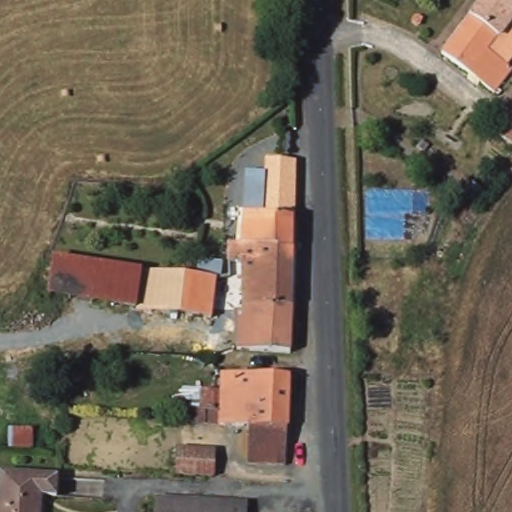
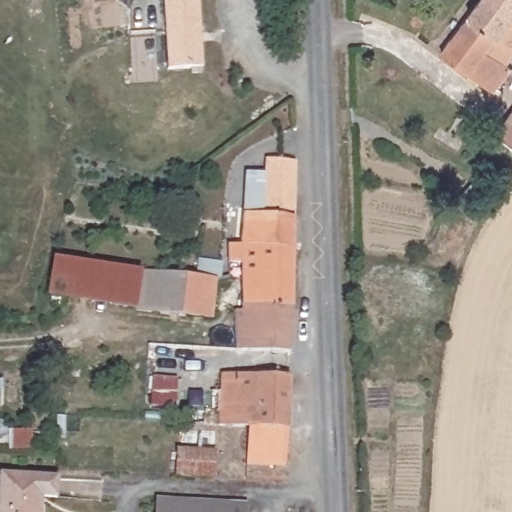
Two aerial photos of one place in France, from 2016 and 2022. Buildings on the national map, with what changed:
new [(203,67),(168,69),(164,0),(199,0),(200,32),(201,41),(203,67)]
unchanged [(494,93),(442,54),(483,0),(492,0),(502,7),(509,13),(512,15),(512,20),(511,21),(499,37),(488,52),(491,54),(507,65),(512,69),(512,70),(494,93)]
unchanged [(509,13),(502,7),(492,0),(512,0),(512,15),(509,13)]
unchanged [(419,26),(414,26),(414,25),(413,25),(413,24),(412,23),(412,22),(413,21),(413,20),(413,19),(413,18),(414,18),(414,17),(415,17),(416,16),(417,16),(418,16),(419,16),(422,18),(419,26)]
unchanged [(507,65),(491,54),(488,52),(499,37),(511,21),(512,20),(512,58),(507,65)]
unchanged [(499,132),(512,114),(512,145),(499,132)]
unchanged [(294,219),(293,250),(277,248),(241,244),(243,213),(244,213),(244,188),(249,184),(263,185),(266,159),(294,162),(294,219)]
unchanged [(236,350),(234,318),(234,312),(244,312),(244,305),(242,305),(244,263),(229,263),(229,245),(241,244),(277,248),(293,250),(292,289),(292,307),(290,353),(236,350)]
unchanged [(135,309),(49,296),(54,258),(140,271),(135,309)]
unchanged [(136,310),(140,271),(140,270),(188,275),(197,276),(198,258),(222,262),(220,278),(217,278),(211,319),(136,310)]
unchanged [(247,464),(248,427),(219,425),(219,415),(183,414),(184,390),(220,391),(221,373),(280,376),(289,376),(285,466),(247,464)]
unchanged [(208,477),(170,475),(172,449),(209,451),(208,477)]
unchanged [(0,512),(0,474),(58,477),(56,498),(41,497),(41,512),(0,512)]
unchanged [(160,512),(161,499),(251,504),(251,512),(160,512)]

